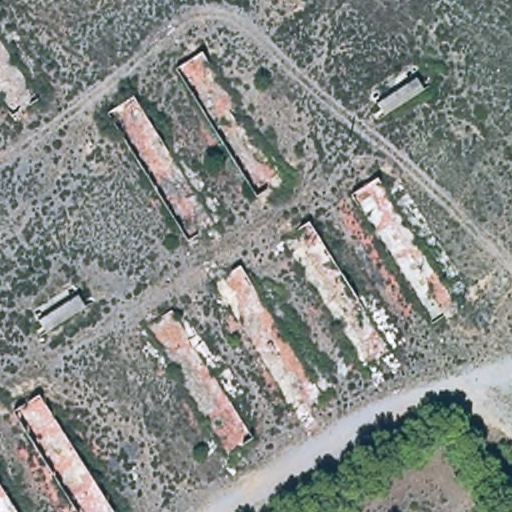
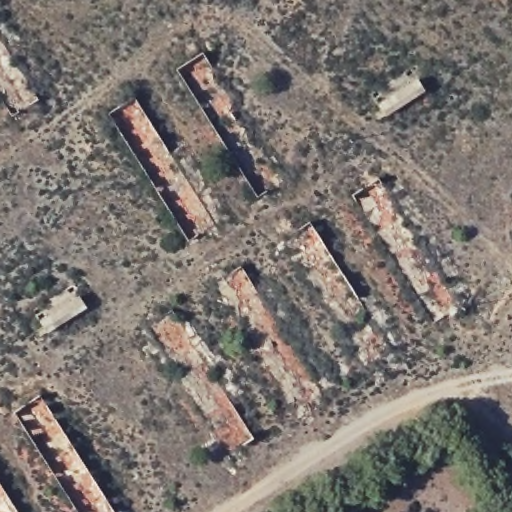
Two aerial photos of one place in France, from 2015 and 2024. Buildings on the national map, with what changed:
unchanged [(418,70),(431,88),(387,117),(375,97),(418,70)]

